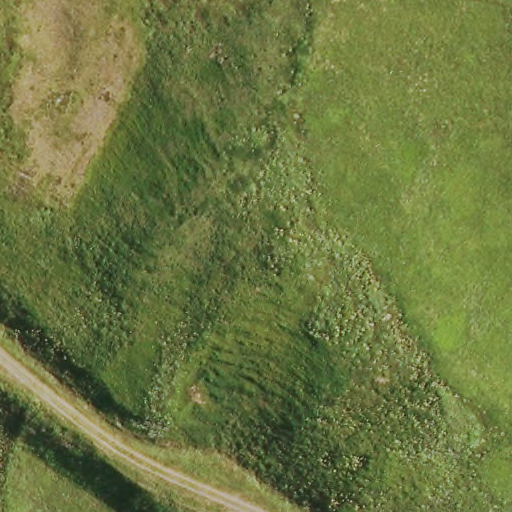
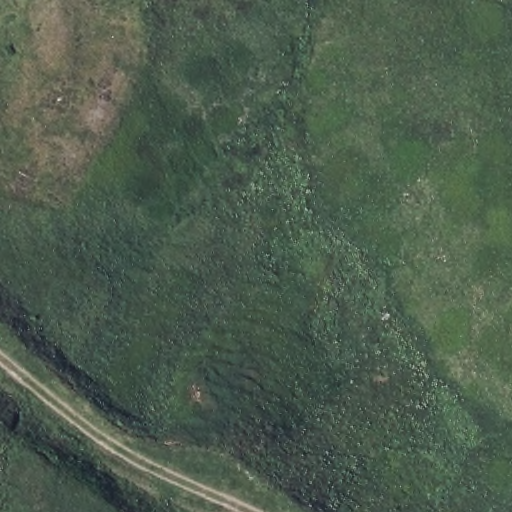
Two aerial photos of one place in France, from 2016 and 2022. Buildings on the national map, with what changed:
[]

